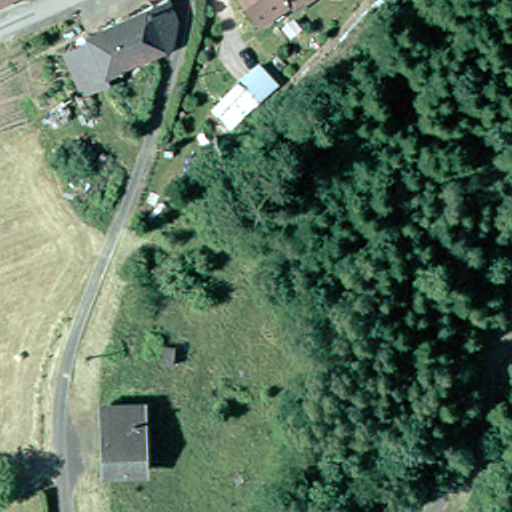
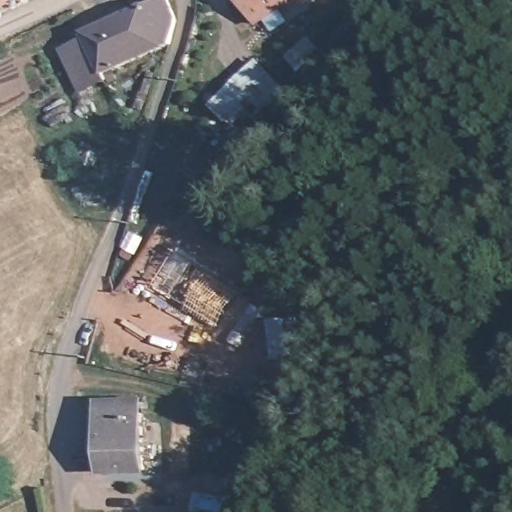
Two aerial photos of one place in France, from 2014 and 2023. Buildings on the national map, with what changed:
unchanged [(12,0),(0,6),(0,0),(12,0)]
unchanged [(165,43),(108,69),(112,76),(109,77),(110,81),(105,84),(103,80),(79,90),(61,49),(85,38),(83,32),(163,0),(165,0),(176,23),(165,43)]
unchanged [(247,0),(287,0),(301,0),(292,6),(289,2),(262,20),(247,0)]
unchanged [(260,65),(278,83),(258,102),(241,84),(260,65)]
unchanged [(103,405),(143,405),(145,471),(105,471),(103,405)]

